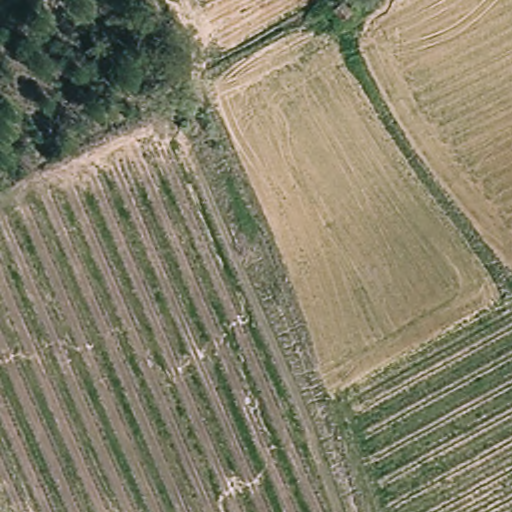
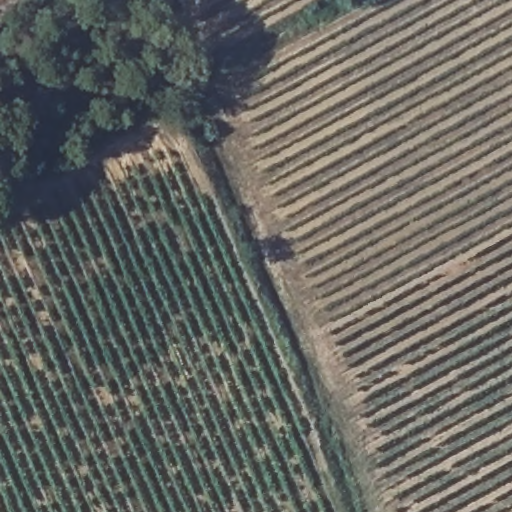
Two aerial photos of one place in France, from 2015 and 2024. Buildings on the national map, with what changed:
unchanged [(332,0),(343,0),(348,11),(335,17),(327,2),(332,0)]

